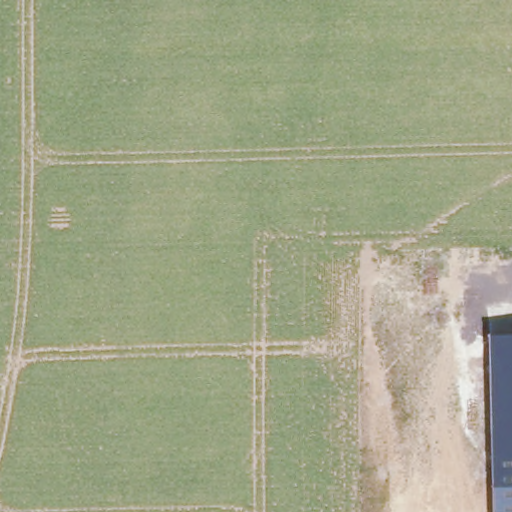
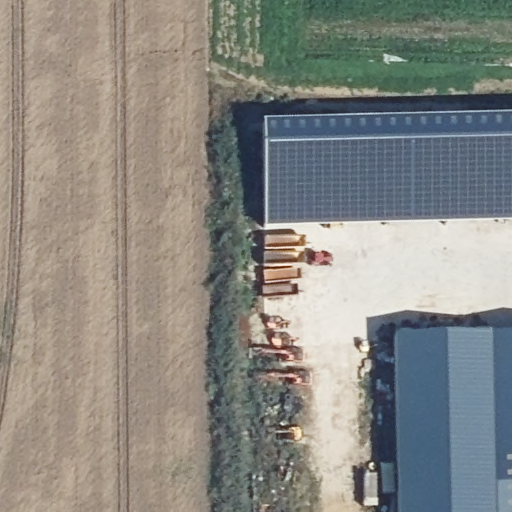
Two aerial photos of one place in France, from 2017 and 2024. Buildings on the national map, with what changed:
new [(261,126),(512,121),(512,226),(263,232),(261,126)]
new [(489,338),(494,487),(494,512),(399,512),(396,340),(489,338)]
unchanged [(494,487),(489,338),(512,338),(512,487),(494,487)]
unchanged [(494,512),(494,487),(512,487),(512,512),(494,512)]

